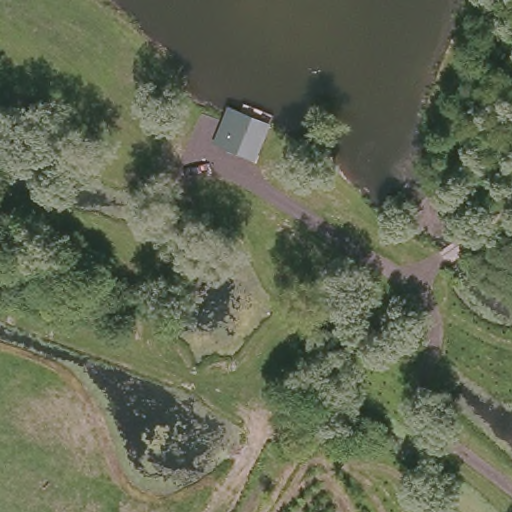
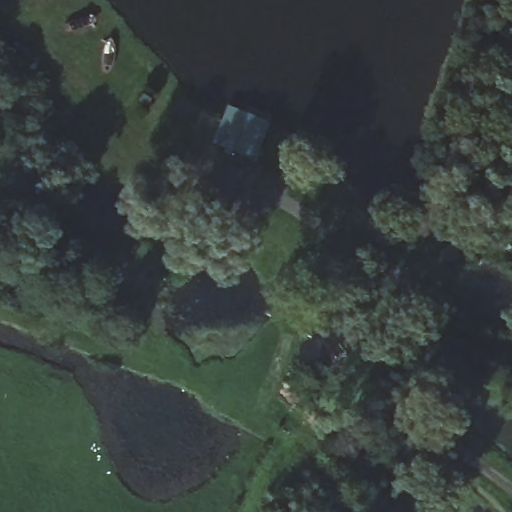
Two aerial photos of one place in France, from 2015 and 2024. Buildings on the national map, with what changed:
unchanged [(275,118),(262,155),(214,141),(227,101),(275,118)]

